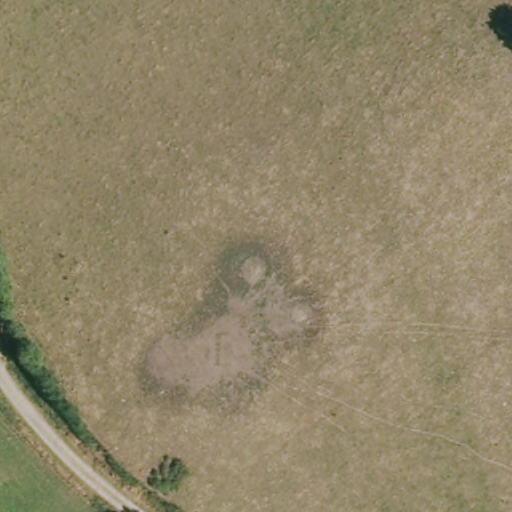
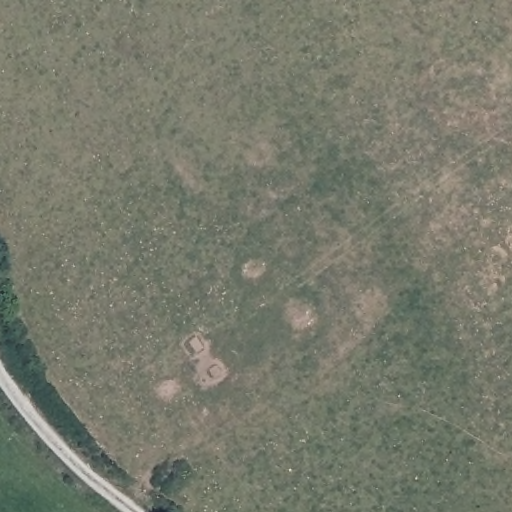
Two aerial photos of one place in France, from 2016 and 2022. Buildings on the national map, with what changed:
[]

